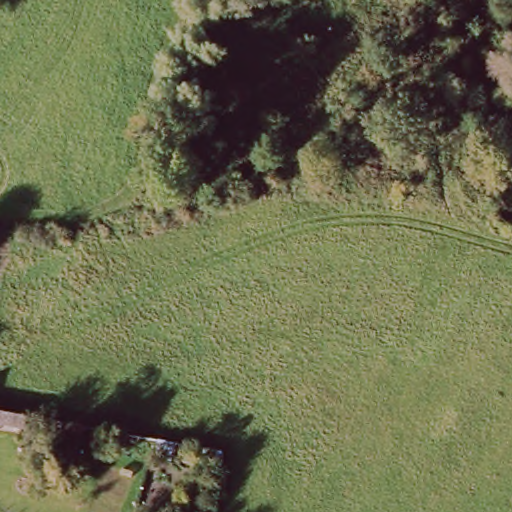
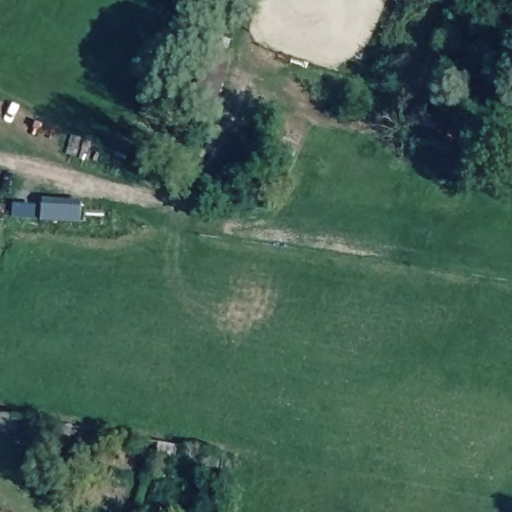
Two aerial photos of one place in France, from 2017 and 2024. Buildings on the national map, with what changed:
unchanged [(26,426),(23,439),(7,436),(0,434),(0,421),(9,423),(26,426)]

